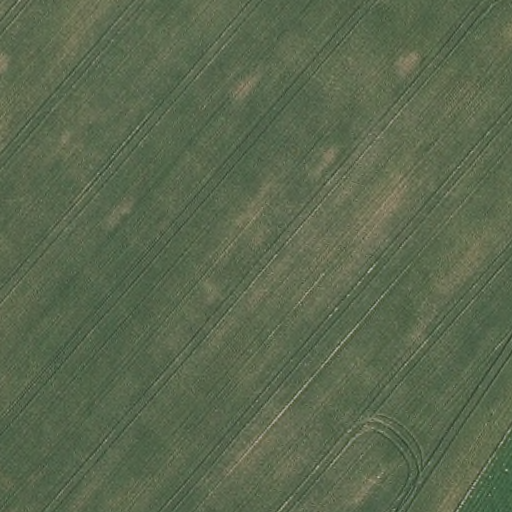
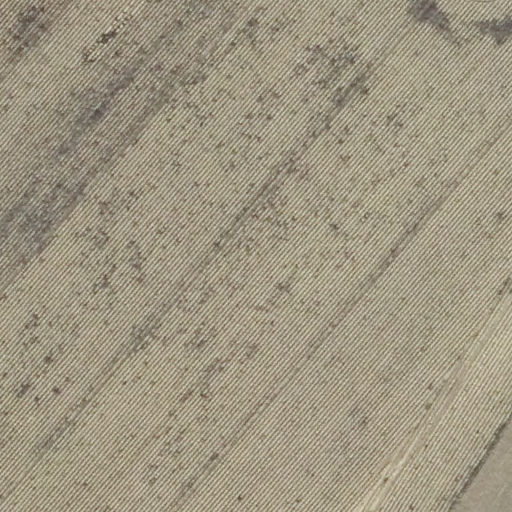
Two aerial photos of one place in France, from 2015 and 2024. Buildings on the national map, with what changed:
[]

